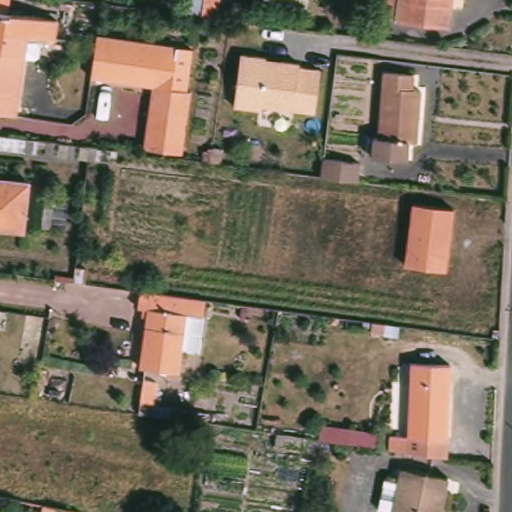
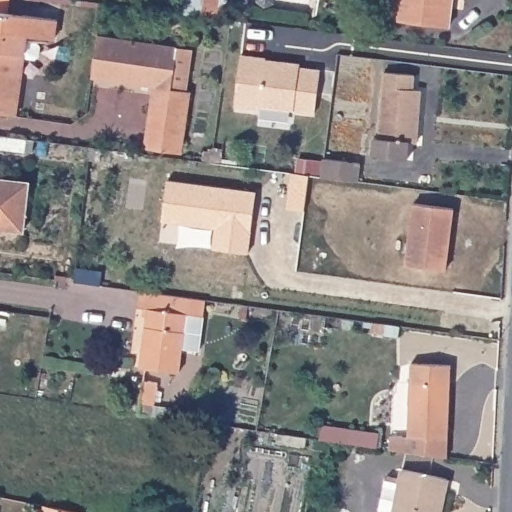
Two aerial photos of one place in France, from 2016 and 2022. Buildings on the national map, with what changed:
unchanged [(217,17),(201,15),(203,0),(219,0),(217,17)]
unchanged [(447,31),(395,24),(398,0),(452,0),(447,31)]
unchanged [(7,17),(56,24),(53,43),(28,39),(27,43),(35,44),(41,51),(41,58),(34,63),(25,62),(19,101),(17,119),(0,117),(0,1),(9,2),(7,17)]
unchanged [(91,76),(97,34),(195,50),(188,91),(155,86),(91,76)]
unchanged [(315,113),(260,105),(260,109),(235,105),(242,54),(267,57),(266,63),(282,65),(282,61),(301,64),(300,68),(321,71),(315,113)]
unchanged [(410,75),(408,89),(416,90),(412,140),(404,140),(402,158),(368,156),(370,138),(375,138),(380,73),(410,75)]
unchanged [(155,86),(188,91),(192,92),(182,153),(145,147),(150,111),(155,86)]
unchanged [(24,150),(0,147),(0,135),(26,138),(24,150)]
unchanged [(55,141),(53,154),(39,151),(41,140),(55,141)]
unchanged [(75,144),(74,156),(60,154),(61,142),(75,144)]
unchanged [(104,148),(103,154),(96,153),(95,159),(89,158),(80,157),(82,145),(104,148)]
unchanged [(222,148),(221,162),(210,161),(212,147),(222,148)]
unchanged [(337,160),(360,163),(357,180),(321,175),(323,158),(337,160)]
new [(247,250),(215,245),(217,225),(166,217),(170,181),(254,192),(247,250)]
unchanged [(18,234),(0,231),(0,184),(25,187),(18,234)]
unchanged [(453,213),(445,273),(406,269),(415,208),(453,213)]
unchanged [(76,267),(87,268),(86,283),(55,278),(57,264),(76,267)]
unchanged [(182,352),(179,376),(140,370),(147,312),(139,311),(141,295),(205,304),(202,320),(197,354),(182,352)]
unchanged [(365,321),(386,324),(384,334),(371,332),(372,327),(364,326),(365,321)]
unchanged [(451,370),(448,442),(408,440),(412,368),(451,370)]
unchanged [(156,382),(152,404),(140,402),(144,380),(156,382)]
unchanged [(401,474),(447,483),(442,512),(380,512),(386,483),(398,486),(401,474)]
unchanged [(43,512),(44,509),(55,512),(43,512)]

